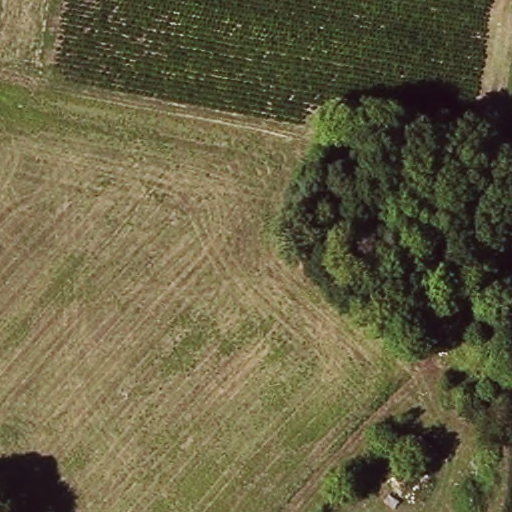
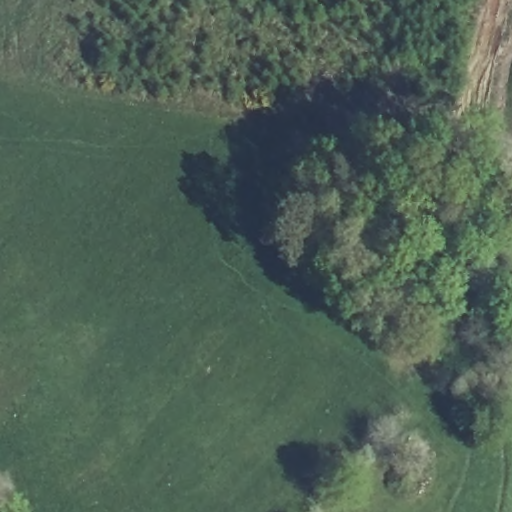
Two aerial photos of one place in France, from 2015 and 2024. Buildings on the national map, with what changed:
[]

